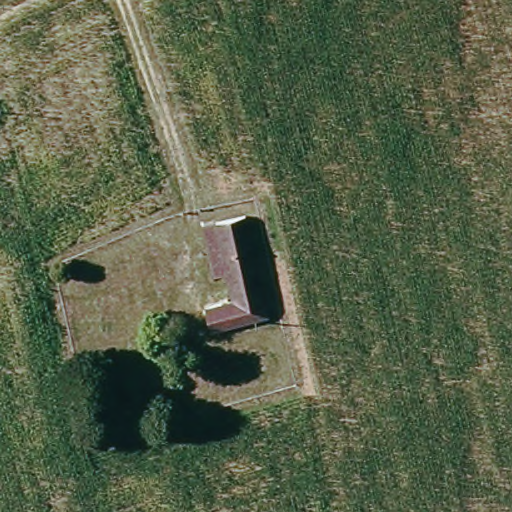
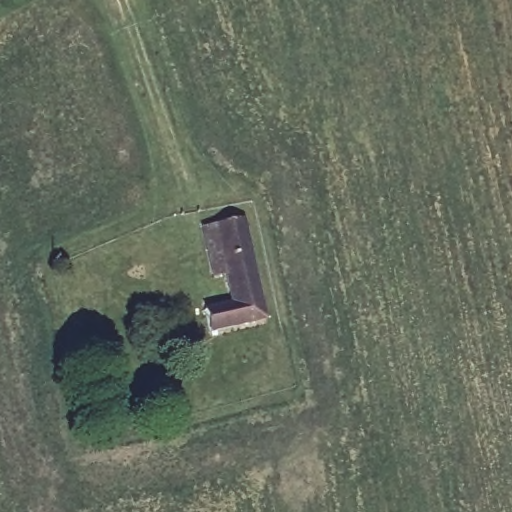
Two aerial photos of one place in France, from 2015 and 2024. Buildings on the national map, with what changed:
unchanged [(217,255),(212,225),(240,219),(247,249),(259,299),(232,304),(221,254),(217,255)]
unchanged [(201,310),(232,304),(259,299),(265,322),(206,334),(201,310)]

